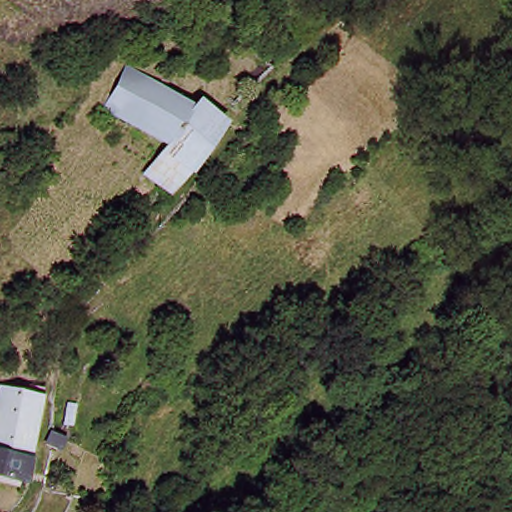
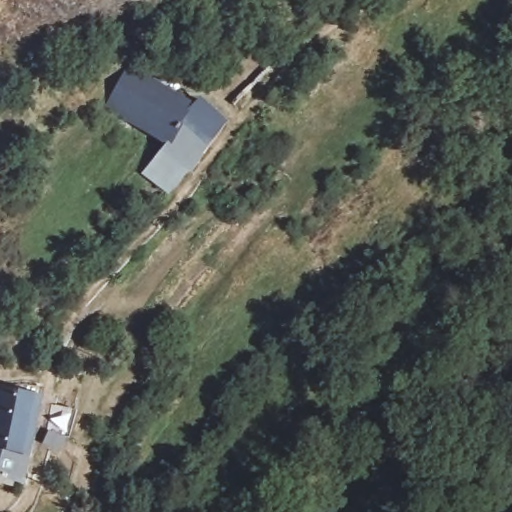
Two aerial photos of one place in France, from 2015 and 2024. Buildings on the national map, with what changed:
unchanged [(152,83),(155,85),(194,111),(204,99),(232,121),(174,200),(144,177),(162,150),(165,147),(112,107),(111,107),(107,104),(135,70),(152,83)]
unchanged [(37,393),(19,457),(0,454),(0,403),(3,392),(37,393)]
unchanged [(12,487),(0,484),(0,454),(19,457),(12,487)]

